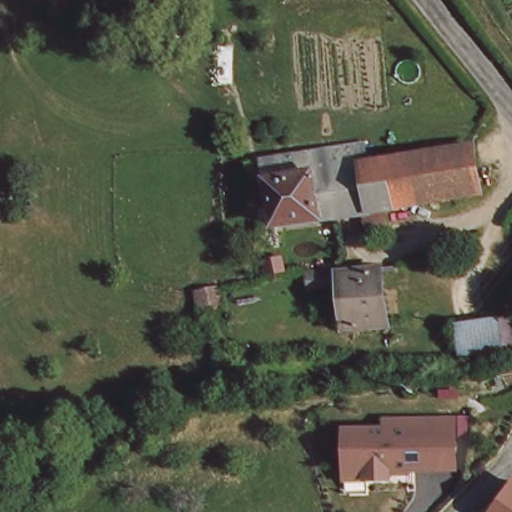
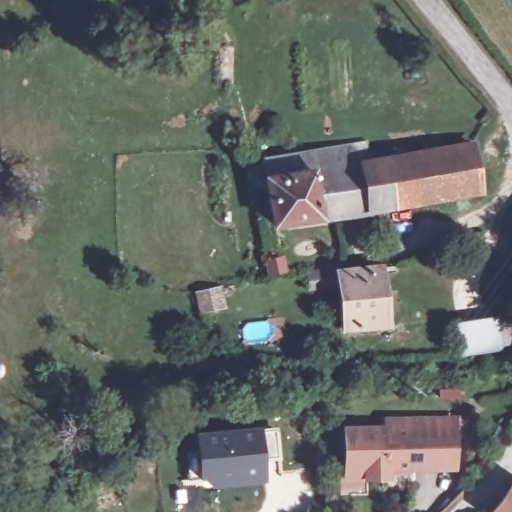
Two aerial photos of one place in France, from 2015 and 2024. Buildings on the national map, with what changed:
unchanged [(366,224),(363,205),(337,209),(338,212),(273,222),(263,158),(361,142),(364,159),(450,145),(473,142),(478,186),(457,190),(380,202),(383,221),(366,224)]
unchanged [(352,311),(349,289),(319,294),(316,277),(347,273),(348,278),(387,273),(394,328),(356,333),(352,311)]
unchanged [(207,293),(219,290),(222,306),(202,311),(199,294),(207,293)]
unchanged [(457,329),(497,325),(512,323),(512,338),(499,340),(499,346),(500,355),(460,359),(459,350),(457,329)]
unchanged [(339,461),(339,438),(338,424),(351,424),(386,424),(386,416),(433,415),(433,424),(453,423),(454,463),(386,464),(386,474),(362,474),(339,474),(339,461)]
new [(212,489),(198,478),(198,458),(194,432),(261,427),(261,428),(278,427),(281,460),(265,461),(268,483),(212,489)]
unchanged [(495,512),(512,487),(512,512),(495,512)]

